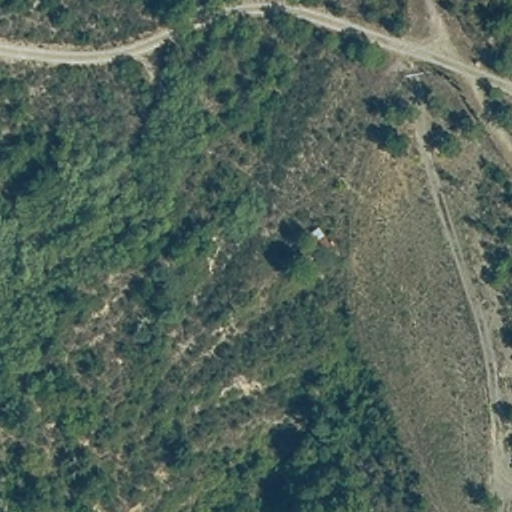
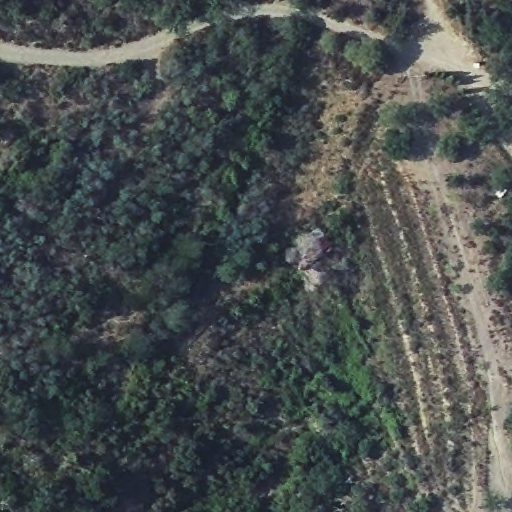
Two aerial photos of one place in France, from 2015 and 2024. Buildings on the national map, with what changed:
unchanged [(299,254),(310,248),(304,242),(319,230),(333,249),(306,264),(299,254)]

